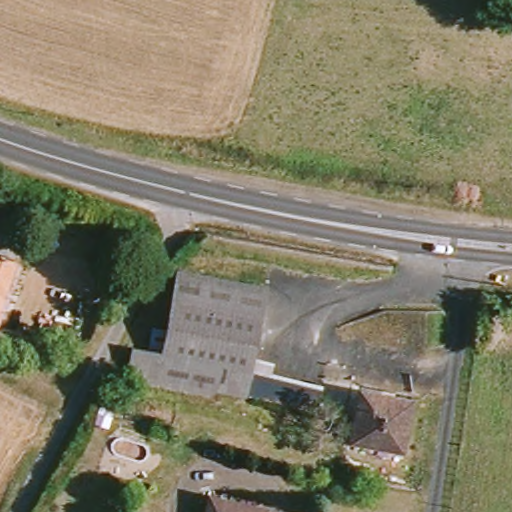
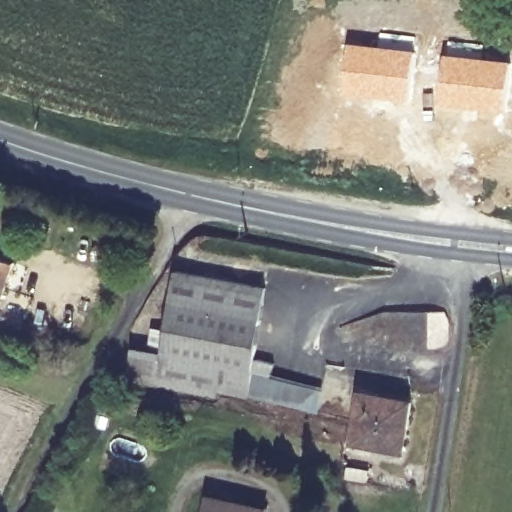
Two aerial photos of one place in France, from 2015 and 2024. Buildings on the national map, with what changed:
new [(349,41),(379,44),(380,32),(416,36),(408,101),(344,95),(349,41)]
new [(445,51),(510,60),(503,117),(437,106),(445,51)]
unchanged [(16,255),(5,320),(0,320),(0,253),(16,255)]
unchanged [(134,345),(135,345),(161,351),(175,269),(267,286),(254,372),(250,398),(124,374),(122,374),(134,345)]
unchanged [(127,309),(112,305),(116,290),(132,294),(127,309)]
unchanged [(254,372),(325,386),(320,411),(250,398),(254,372)]
unchanged [(357,396),(409,408),(399,457),(347,445),(357,396)]
unchanged [(263,511),(263,512),(213,512),(214,500),(263,511)]

